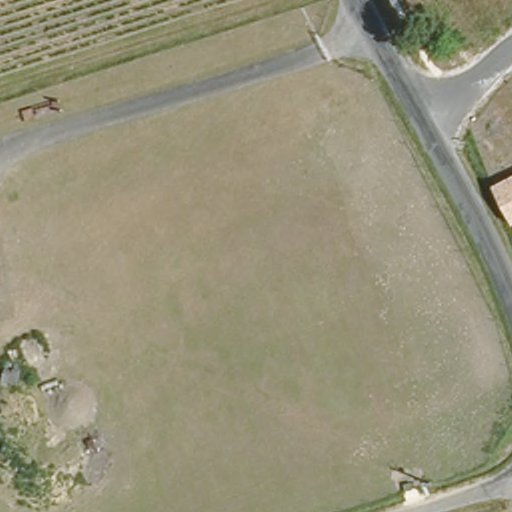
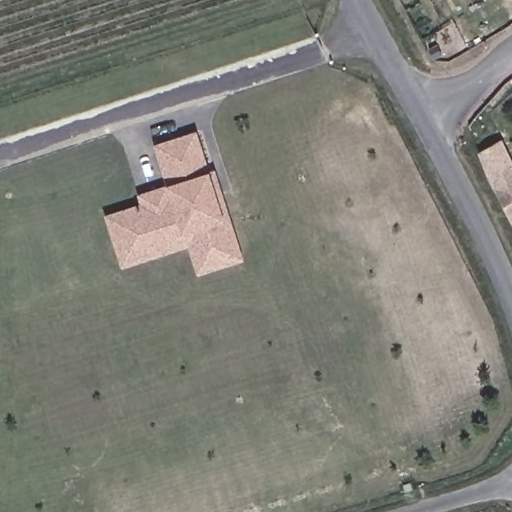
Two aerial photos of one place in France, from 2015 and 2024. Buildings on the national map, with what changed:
new [(136,195),(165,186),(153,146),(193,133),(207,175),(214,172),(222,197),(242,261),(211,271),(198,229),(183,234),(165,224),(148,230),(152,241),(138,246),(121,238),(113,213),(139,205),(136,195)]
unchanged [(494,186),(512,177),(512,223),(494,186)]
new [(188,245),(120,267),(104,216),(113,213),(121,238),(138,246),(152,241),(148,230),(165,224),(183,234),(198,229),(211,271),(198,275),(188,245)]

